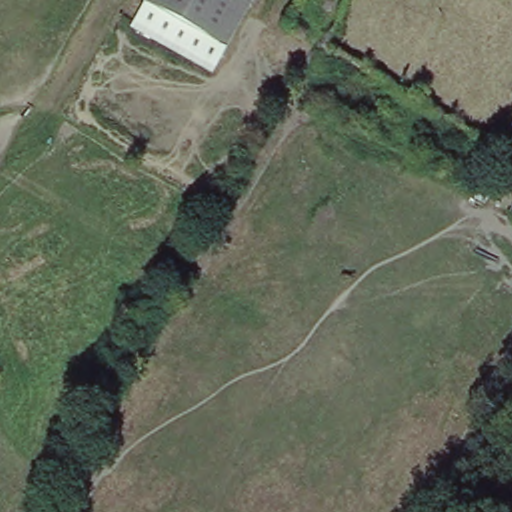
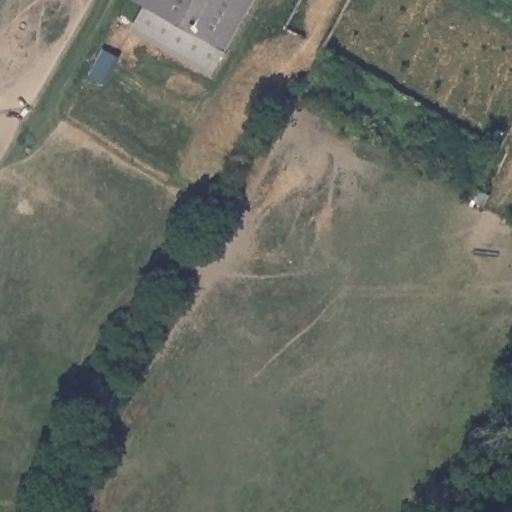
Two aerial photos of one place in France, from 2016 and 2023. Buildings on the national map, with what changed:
unchanged [(253,0),(215,69),(135,25),(145,6),(149,0),(253,0)]
unchanged [(149,0),(145,6),(136,0),(149,0)]
unchanged [(480,190),(491,196),(485,206),(475,200),(480,190)]

